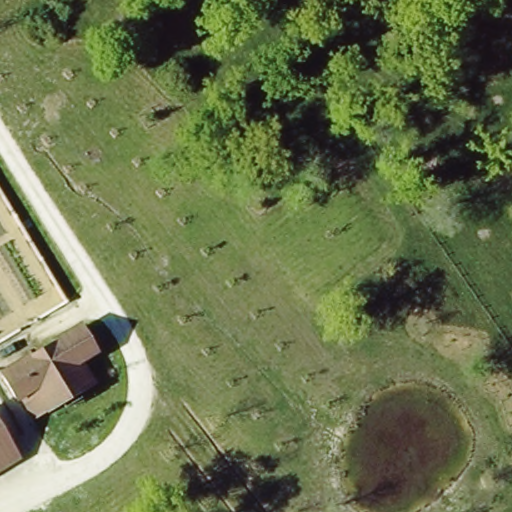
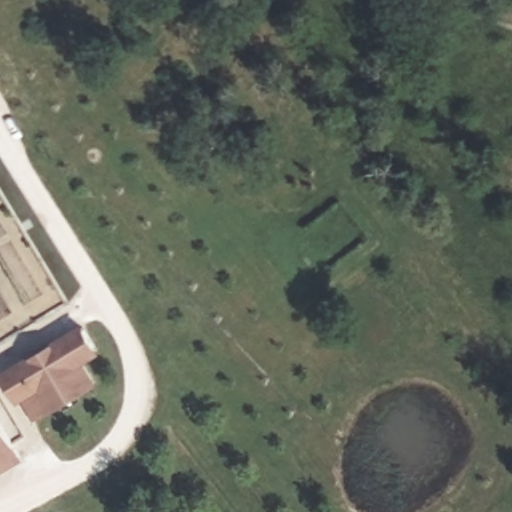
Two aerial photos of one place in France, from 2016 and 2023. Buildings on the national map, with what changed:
unchanged [(20,412),(0,380),(0,366),(69,325),(92,370),(20,412)]
unchanged [(20,458),(0,470),(0,425),(20,458)]

